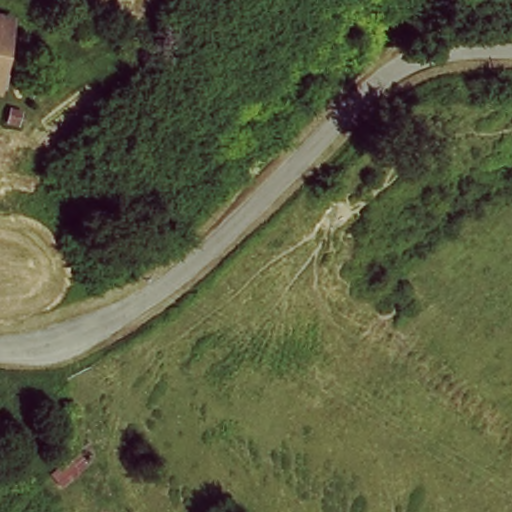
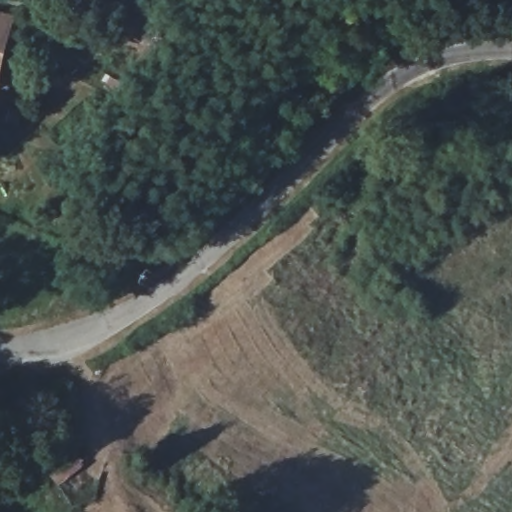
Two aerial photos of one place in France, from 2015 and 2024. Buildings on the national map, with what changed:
unchanged [(0,20),(16,23),(0,83),(0,20)]
unchanged [(73,475),(63,486),(46,469),(70,445),(87,461),(73,475)]

